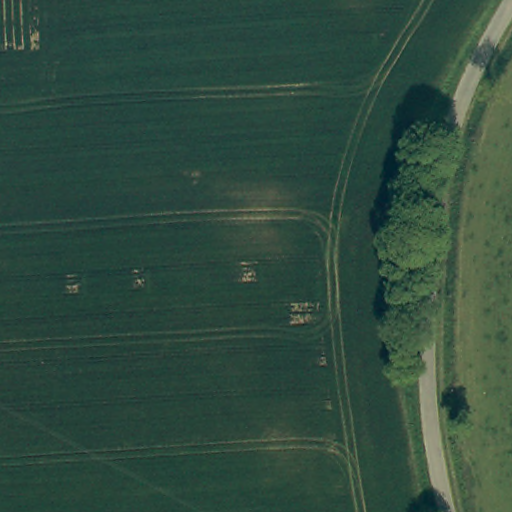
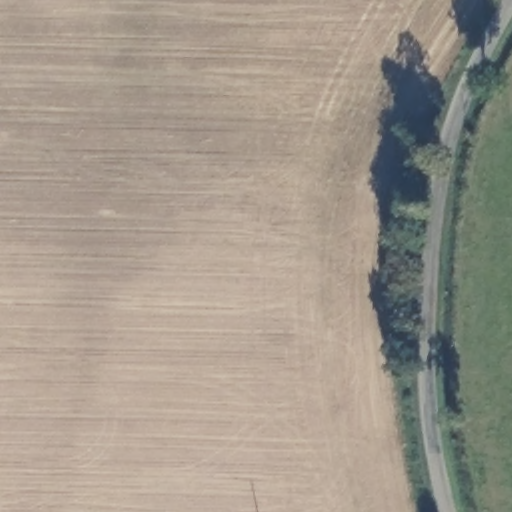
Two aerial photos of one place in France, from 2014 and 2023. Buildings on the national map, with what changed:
[]

